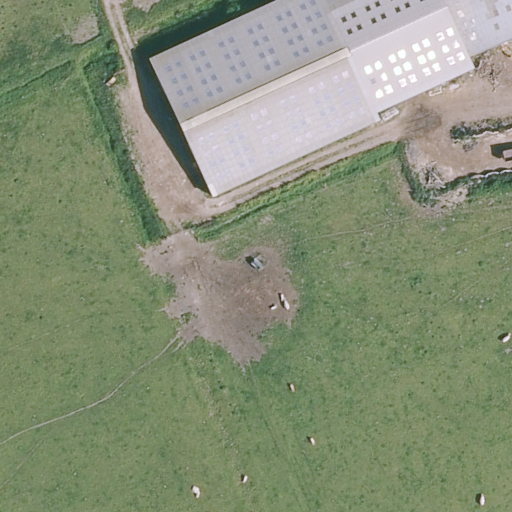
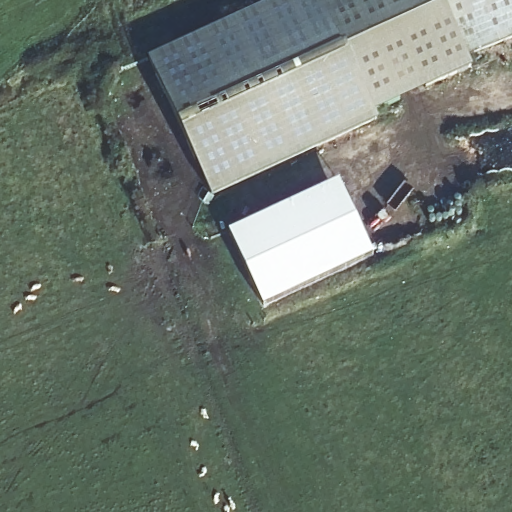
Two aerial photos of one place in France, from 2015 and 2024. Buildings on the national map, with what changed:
unchanged [(206,189),(145,52),(262,0),(386,0),(424,94),(206,189)]
unchanged [(470,75),(424,94),(386,0),(512,0),(512,37),(463,56),(470,75)]
new [(351,181),(390,271),(272,325),(227,239),(351,181)]

